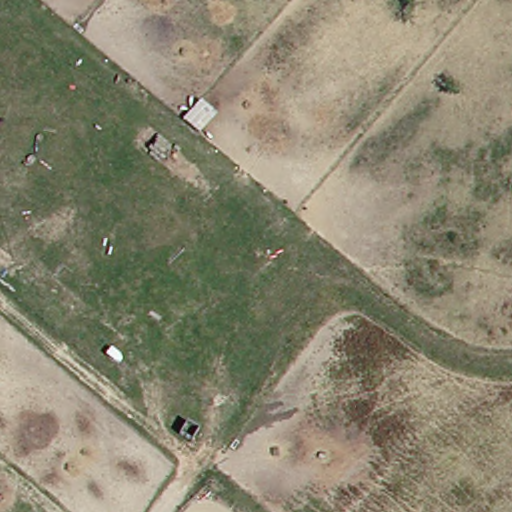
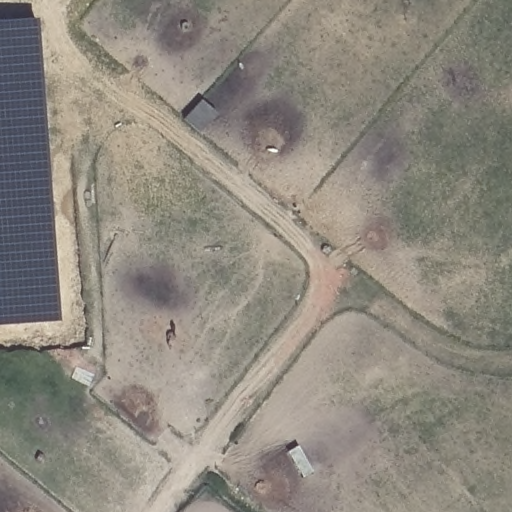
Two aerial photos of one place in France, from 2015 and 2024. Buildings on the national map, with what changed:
new [(61,321),(0,326),(0,23),(36,20),(61,321)]

